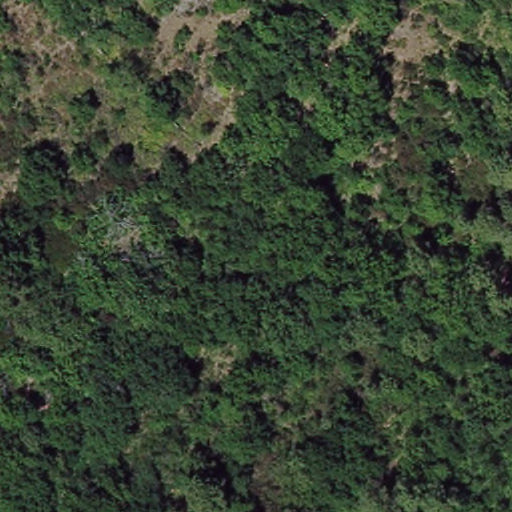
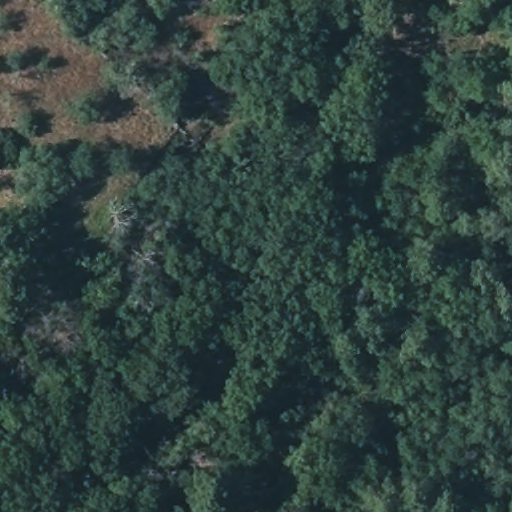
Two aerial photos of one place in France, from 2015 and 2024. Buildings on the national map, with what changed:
[]

